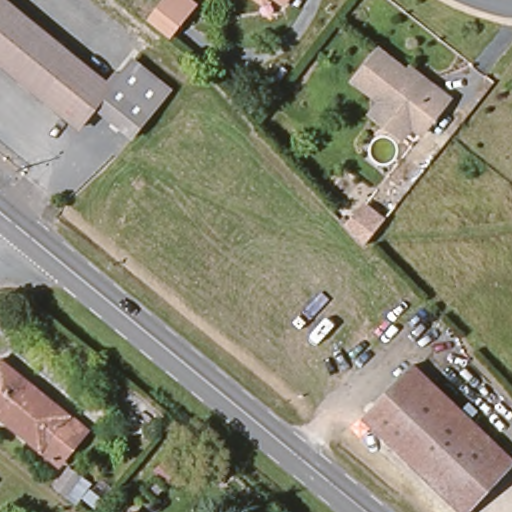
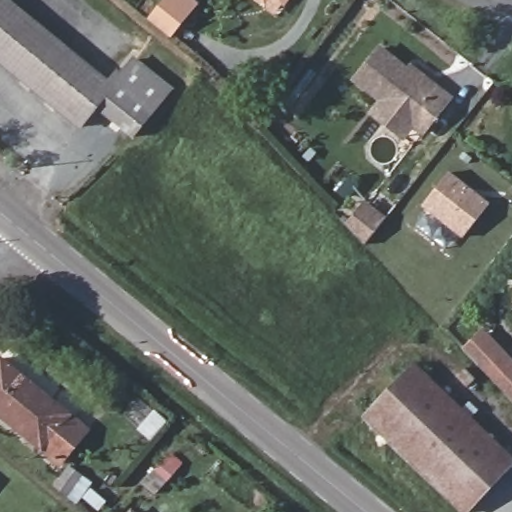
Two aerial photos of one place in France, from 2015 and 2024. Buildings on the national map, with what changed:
unchanged [(84,129),(0,58),(0,0),(13,0),(116,86),(125,76),(130,79),(101,109),(84,129)]
unchanged [(193,0),(203,8),(199,13),(179,38),(156,20),(173,0),(193,0)]
unchanged [(270,0),(272,0),(271,1),(270,0)]
unchanged [(288,0),(290,0),(289,1),(288,0)]
unchanged [(391,50),(420,71),(423,67),(449,87),(463,98),(435,134),(368,81),(391,50)]
unchanged [(144,64),(180,93),(140,140),(139,141),(101,109),(130,79),(144,64)]
new [(421,207),(448,172),(489,204),(462,237),(421,207)]
unchanged [(359,239),(377,217),(396,233),(377,258),(359,239)]
new [(512,361),(512,402),(462,349),(483,331),(512,361)]
unchanged [(43,442),(0,408),(0,354),(1,353),(73,410),(88,423),(59,455),(43,442)]
unchanged [(474,512),(467,512),(369,418),(417,367),(512,457),(512,470),(474,512)]

